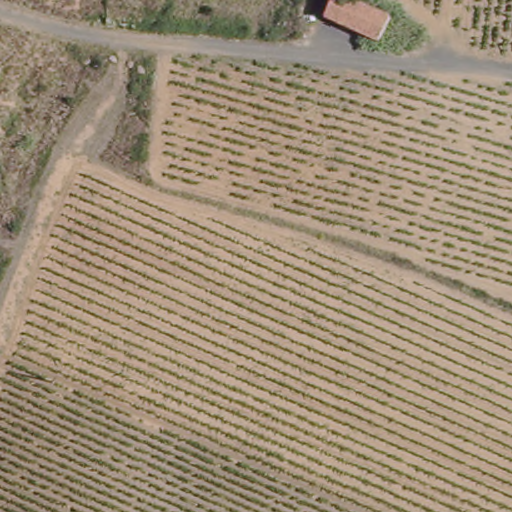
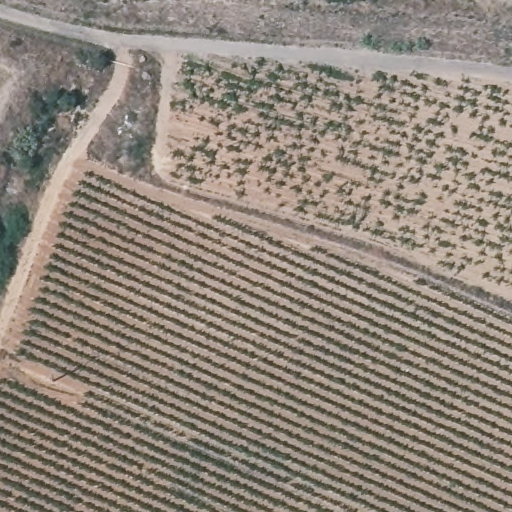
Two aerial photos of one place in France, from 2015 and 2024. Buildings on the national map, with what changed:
demolished [(387,18),(376,37),(327,15),(334,0),(350,0),(387,18)]

